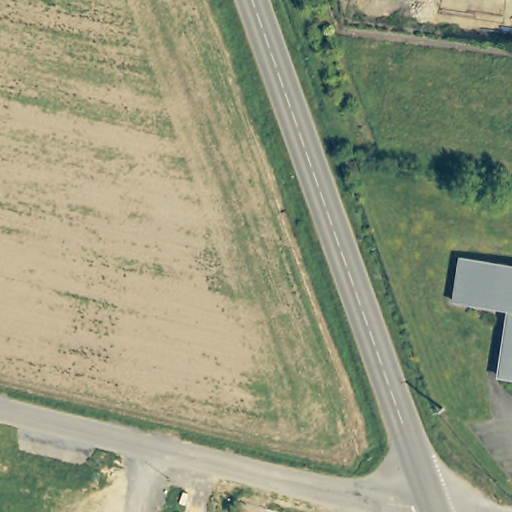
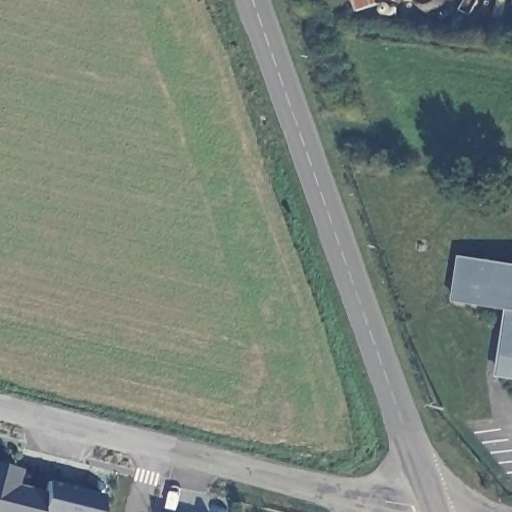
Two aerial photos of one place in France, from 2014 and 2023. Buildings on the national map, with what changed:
new [(360,11),(357,0),(393,0),(393,1),(360,11)]
unchanged [(509,306),(453,297),(460,253),(512,261),(512,374),(498,372),(509,306)]
new [(98,512),(0,512),(0,464),(20,470),(16,485),(44,493),(47,481),(102,494),(98,512)]

